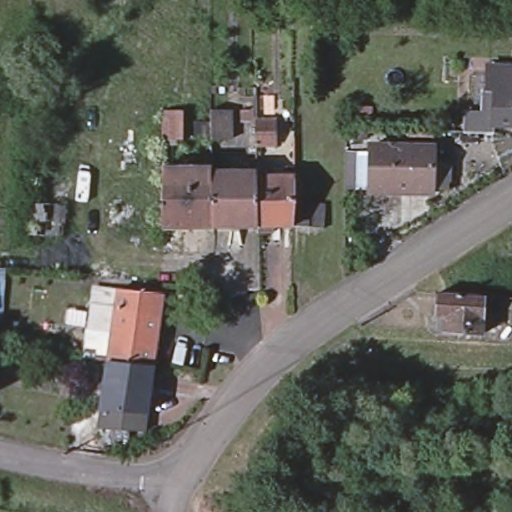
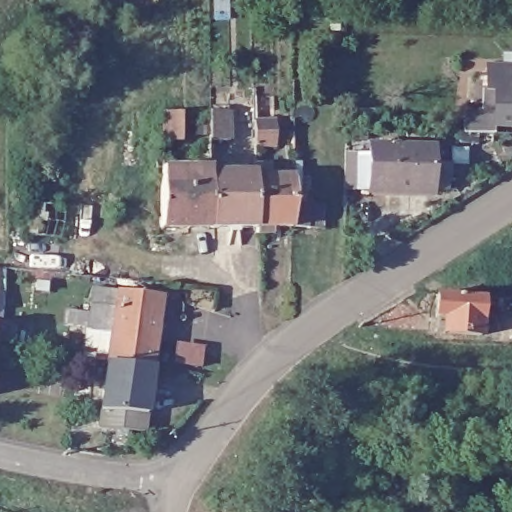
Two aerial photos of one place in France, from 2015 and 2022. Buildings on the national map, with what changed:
unchanged [(481,61),(512,62),(512,129),(492,128),(490,128),(490,139),(462,138),(463,113),(480,113),(481,61)]
unchanged [(449,191),(434,191),(371,189),(372,145),(435,148),(434,175),(450,175),(449,191)]
unchanged [(194,166),(213,166),(214,221),(164,221),(162,221),(163,160),(165,160),(193,161),(194,166)]
unchanged [(295,220),(259,221),(214,221),(213,166),(257,166),(257,164),(264,164),(264,171),(297,170),(297,197),(327,199),(325,223),(295,220)]
unchanged [(110,359),(113,335),(86,330),(92,284),(120,289),(164,294),(160,315),(154,364),(110,359)]
unchanged [(485,294),(483,333),(447,330),(445,329),(437,329),(440,291),(485,294)]
unchanged [(101,427),(104,410),(110,359),(154,364),(147,413),(145,431),(101,427)]

